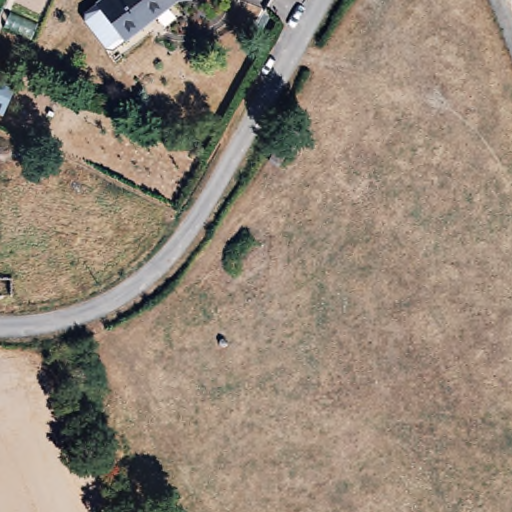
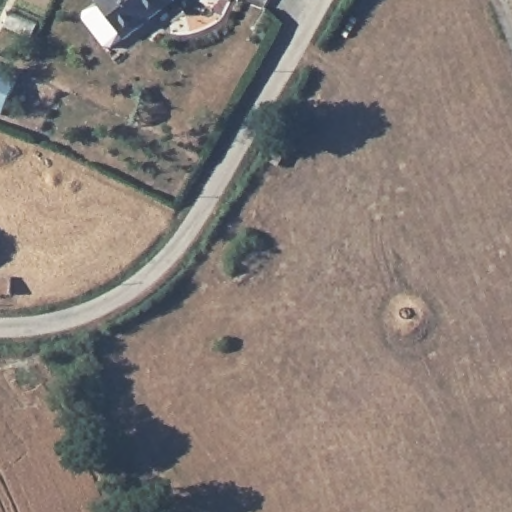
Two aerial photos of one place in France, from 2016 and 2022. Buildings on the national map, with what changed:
unchanged [(176,0),(110,49),(99,46),(81,19),(82,9),(94,0),(176,0)]
unchanged [(16,84),(1,114),(0,114),(0,77),(16,84)]

